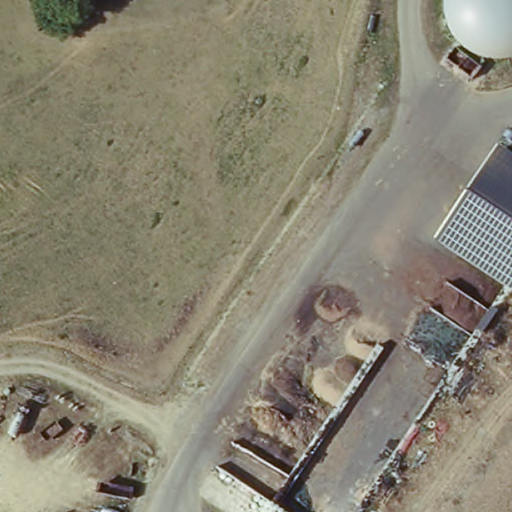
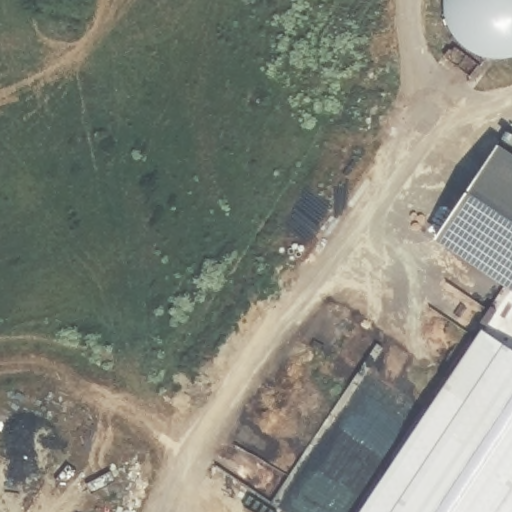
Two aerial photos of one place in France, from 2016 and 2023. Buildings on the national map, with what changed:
unchanged [(512,159),(512,293),(435,241),(496,149),(512,159)]
new [(512,349),(512,512),(362,512),(483,329),(512,349)]

